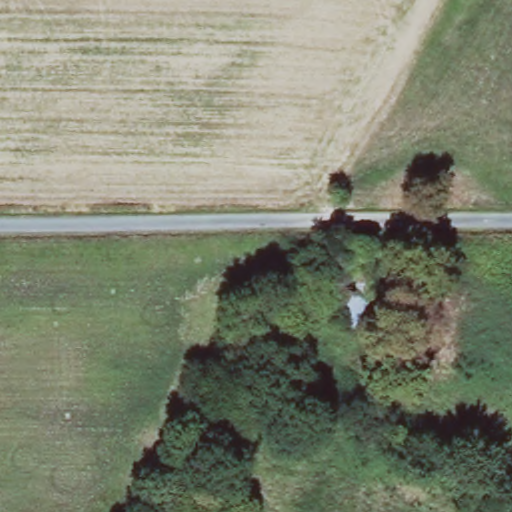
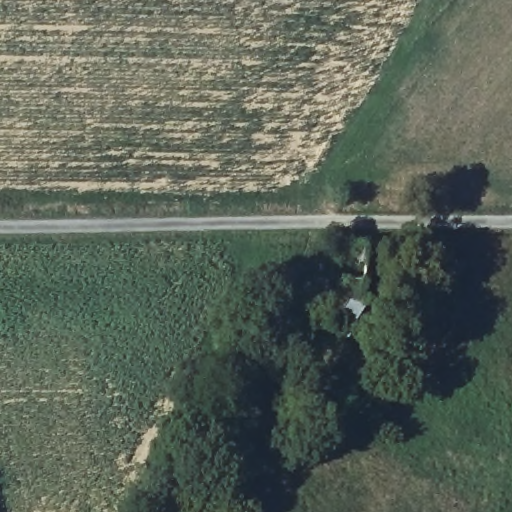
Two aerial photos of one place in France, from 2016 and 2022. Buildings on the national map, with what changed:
unchanged [(383,332),(343,331),(343,248),(383,249),(383,332)]

